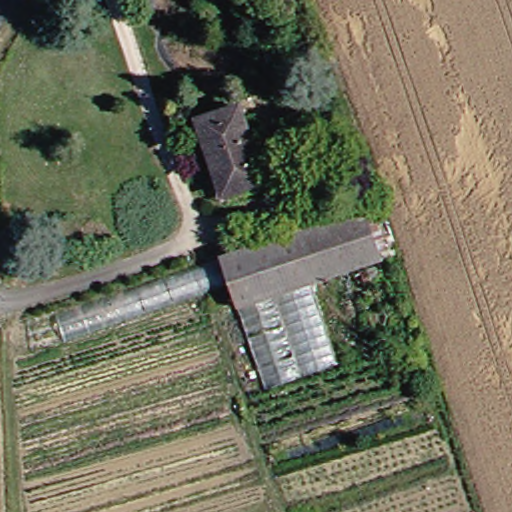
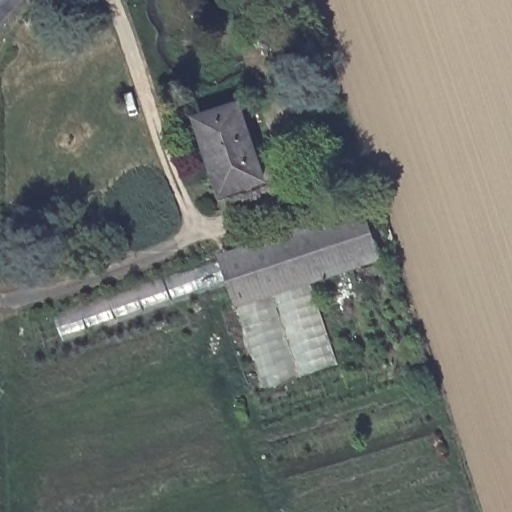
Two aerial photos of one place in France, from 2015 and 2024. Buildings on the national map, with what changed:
unchanged [(243,99),(268,183),(218,198),(203,160),(215,156),(200,113),(243,99)]
unchanged [(386,263),(310,288),(337,365),(269,388),(241,310),(223,257),(368,209),(386,263)]
unchanged [(214,264),(223,289),(50,347),(42,321),(214,264)]

